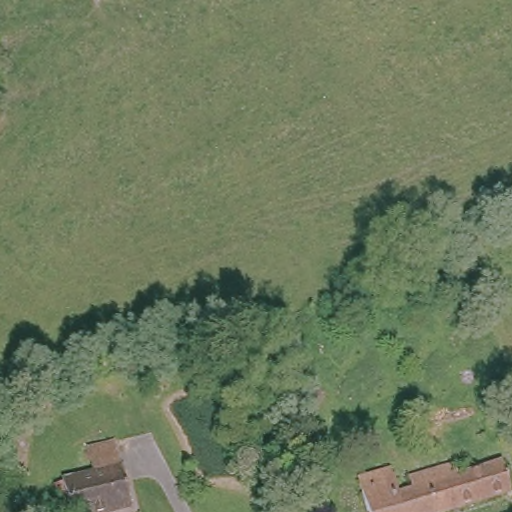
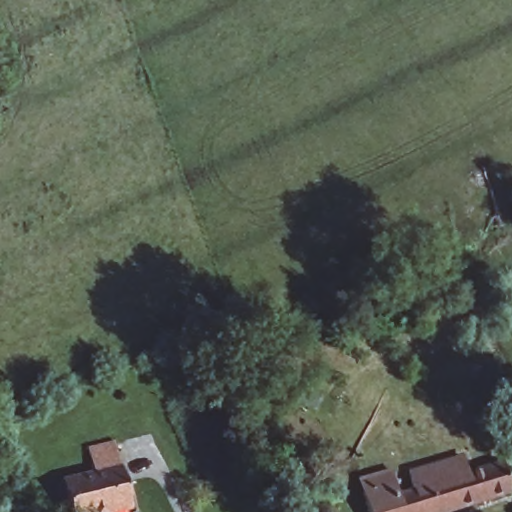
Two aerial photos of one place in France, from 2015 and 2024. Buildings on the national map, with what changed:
unchanged [(128,512),(66,512),(54,476),(91,468),(85,446),(113,440),(131,511),(128,512)]
unchanged [(399,497),(417,492),(413,480),(440,473),(443,484),(503,467),(510,493),(448,512),(367,512),(359,483),(381,475),(392,471),(399,497)]

